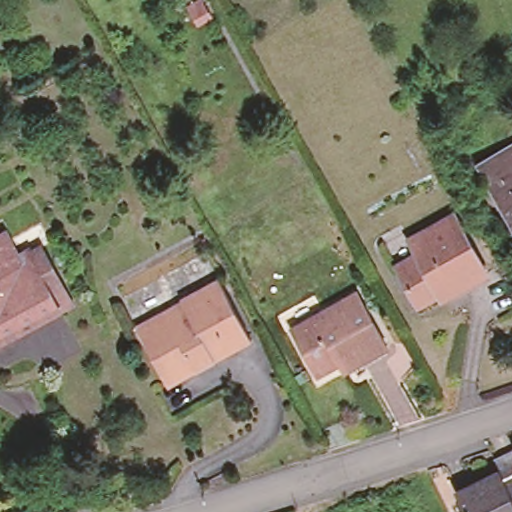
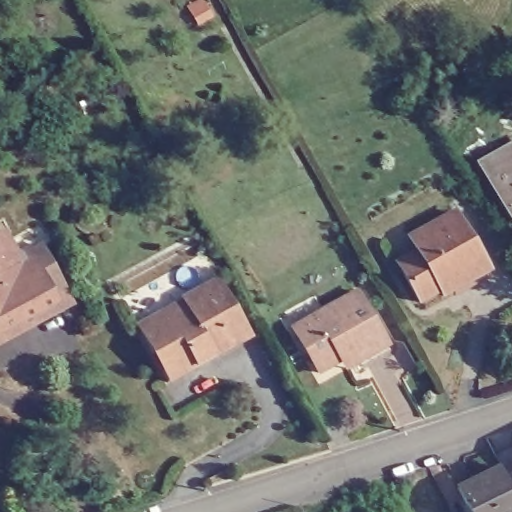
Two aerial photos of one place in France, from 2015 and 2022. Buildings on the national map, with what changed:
unchanged [(479,160),(512,141),(512,219),(479,160)]
unchanged [(401,232),(448,207),(479,266),(435,290),(433,285),(410,297),(388,258),(409,247),(401,232)]
unchanged [(18,249),(41,240),(70,295),(0,338),(0,224),(6,221),(18,249)]
unchanged [(178,297),(216,276),(247,335),(195,363),(191,358),(164,373),(167,379),(165,380),(136,326),(181,302),(178,297)]
unchanged [(351,288),(381,341),(350,358),(343,345),(333,351),(335,355),(311,367),(287,325),(351,288)]
unchanged [(512,439),(512,443),(511,440),(512,439)]
unchanged [(496,463),(490,450),(511,440),(512,443),(512,512),(467,512),(453,485),(496,463)]

